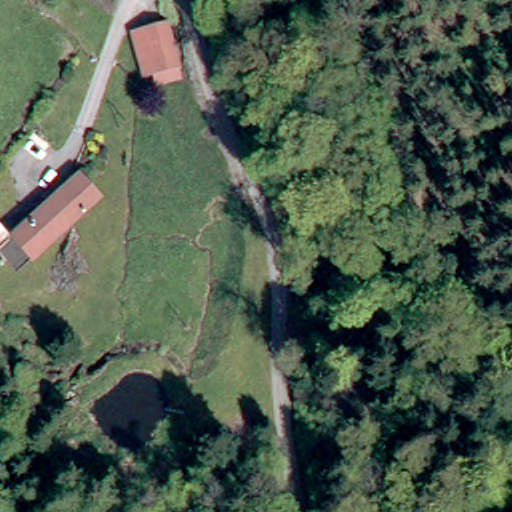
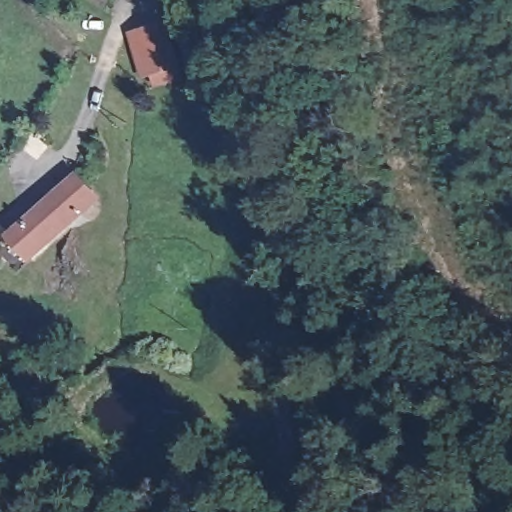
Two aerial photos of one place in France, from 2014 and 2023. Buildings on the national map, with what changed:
unchanged [(172,68),(152,75),(140,38),(157,30),(172,68)]
unchanged [(14,238),(62,189),(78,173),(97,192),(81,209),(35,257),(14,238)]

